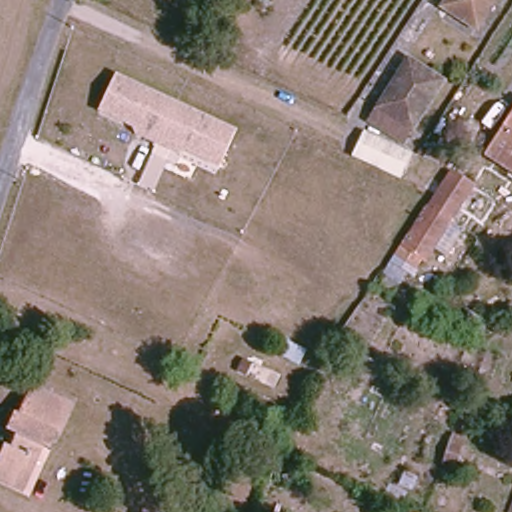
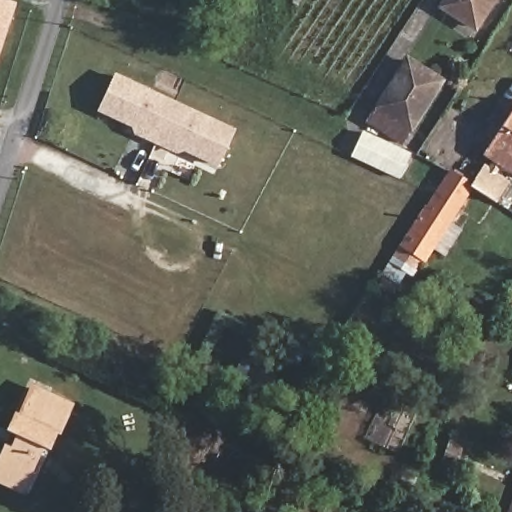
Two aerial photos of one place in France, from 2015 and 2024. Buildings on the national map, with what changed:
new [(18,3),(0,59),(0,0),(7,0),(18,3)]
unchanged [(476,27),(444,8),(449,0),(493,0),(476,27)]
unchanged [(405,148),(412,153),(401,180),(355,157),(366,130),(382,137),(384,132),(368,121),(407,55),(447,79),(405,148)]
unchanged [(112,73),(233,131),(225,149),(102,92),(112,73)]
unchanged [(225,149),(217,165),(171,143),(169,148),(138,134),(141,128),(96,107),(102,92),(225,149)]
unchanged [(512,115),(512,168),(488,152),(512,115)]
unchanged [(437,251),(403,297),(385,285),(434,194),(423,189),(432,175),(443,181),(449,169),(477,185),(455,225),(463,230),(447,257),(437,251)]
unchanged [(18,487),(0,479),(0,464),(8,444),(16,447),(20,437),(14,434),(7,431),(16,410),(22,413),(34,385),(72,402),(52,447),(46,445),(33,475),(27,490),(18,487)]

